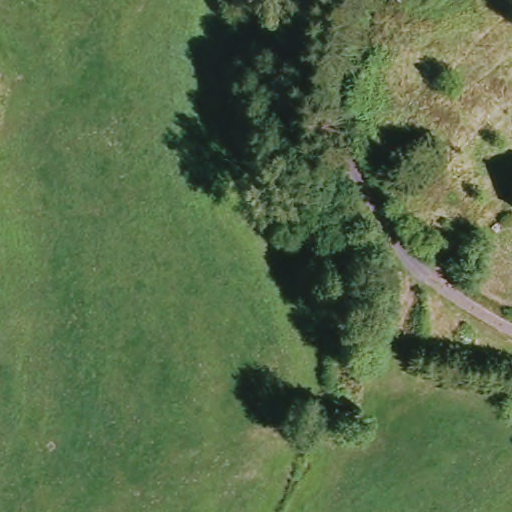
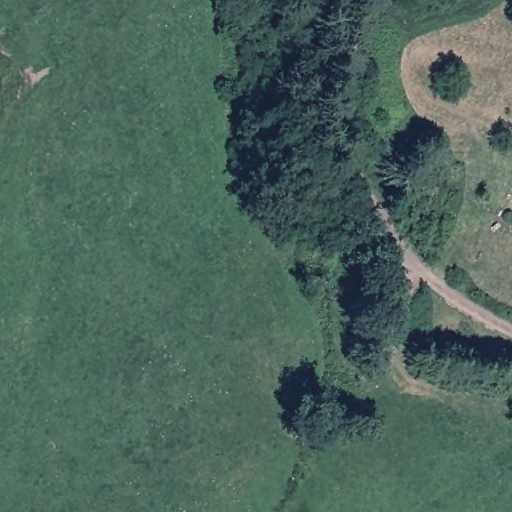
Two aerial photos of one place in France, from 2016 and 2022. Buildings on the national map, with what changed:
unchanged [(512,203),(512,205),(511,205),(512,203)]

